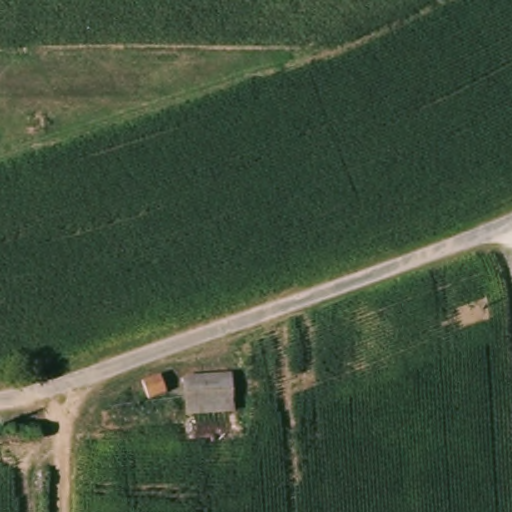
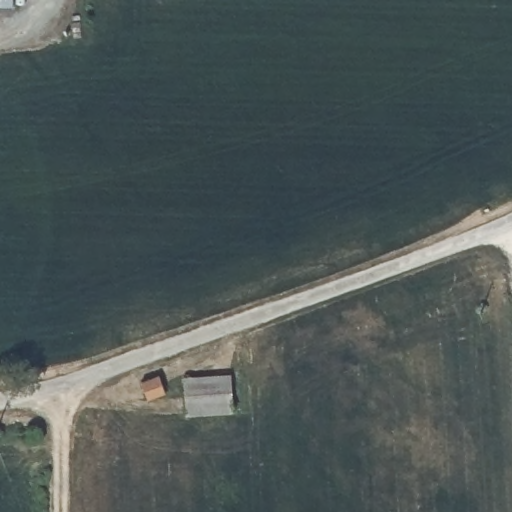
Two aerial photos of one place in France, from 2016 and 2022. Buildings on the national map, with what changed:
new [(14,6),(0,6),(0,0),(14,0),(14,6)]
unchanged [(170,395),(146,402),(140,385),(164,375),(170,395)]
unchanged [(234,375),(237,405),(195,410),(193,378),(234,375)]

